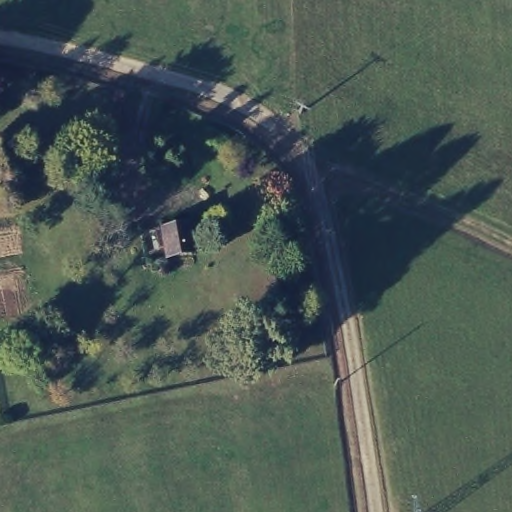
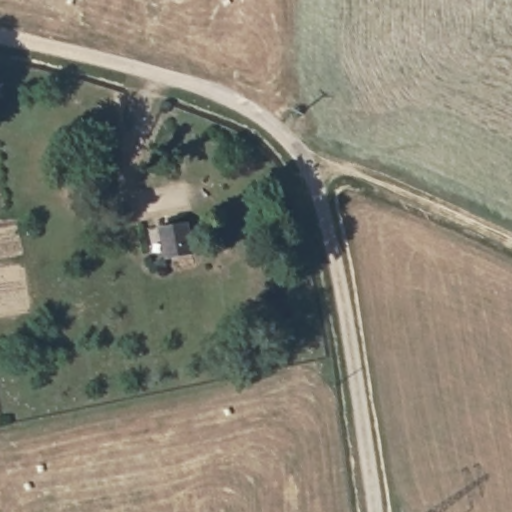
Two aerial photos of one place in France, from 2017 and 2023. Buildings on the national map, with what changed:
unchanged [(163,235),(187,231),(192,253),(167,257),(163,235)]

